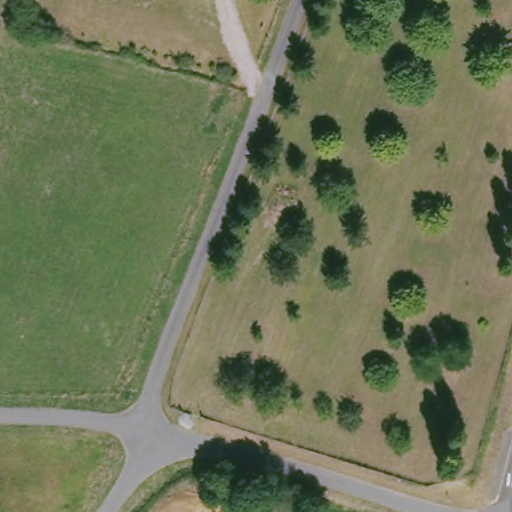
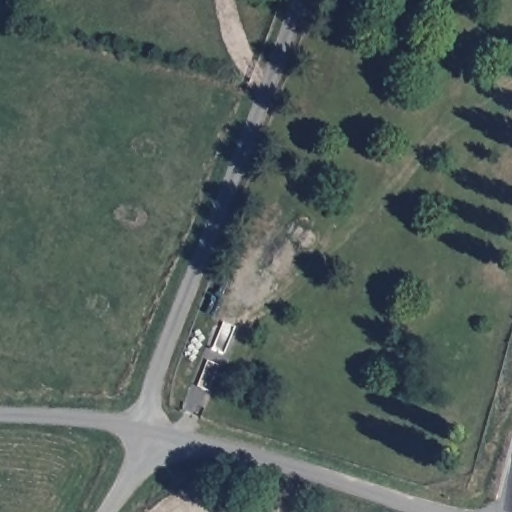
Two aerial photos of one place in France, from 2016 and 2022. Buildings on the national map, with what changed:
[]

